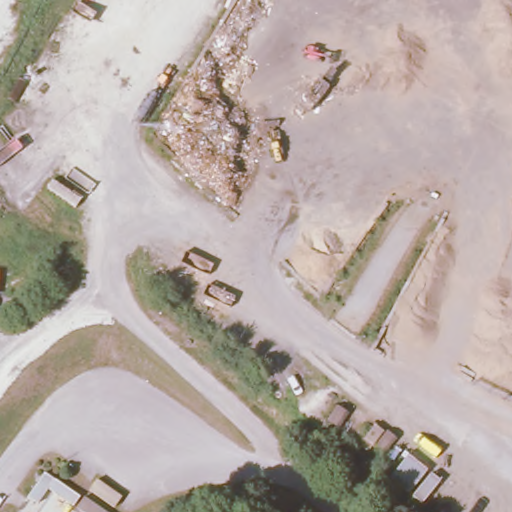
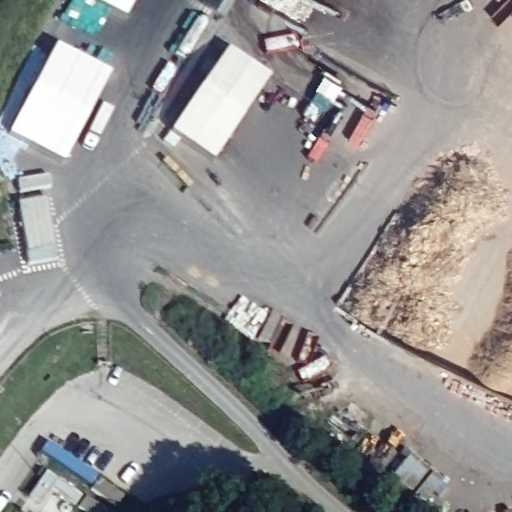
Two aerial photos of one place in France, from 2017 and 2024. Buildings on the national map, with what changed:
new [(89,0),(134,0),(124,19),(89,0)]
new [(105,71),(101,78),(105,80),(60,163),(8,136),(55,46),(105,71)]
new [(239,121),(210,163),(168,135),(226,51),(265,79),(237,120),(239,121)]
new [(45,199),(56,261),(27,266),(16,204),(45,199)]
unchanged [(407,447),(444,478),(422,501),(388,473),(407,447)]

